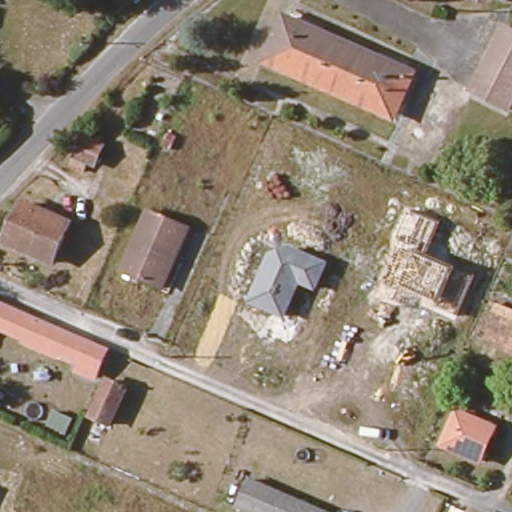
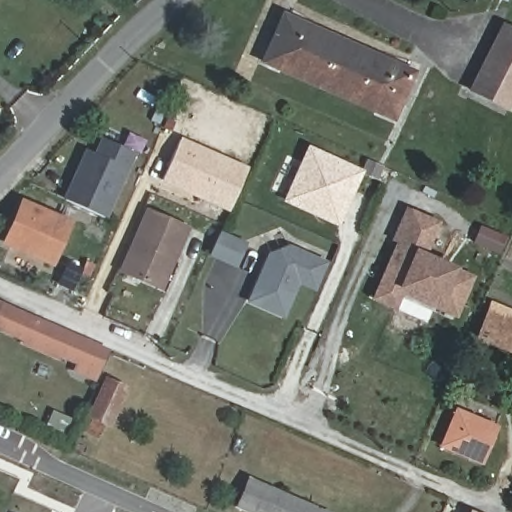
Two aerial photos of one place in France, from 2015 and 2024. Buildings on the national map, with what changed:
unchanged [(502,1),(500,0),(503,0),(502,1)]
unchanged [(381,115),(270,65),(260,61),(266,49),(281,15),(410,72),(396,106),(391,119),(381,115)]
unchanged [(506,110),(467,90),(500,26),(512,32),(512,99),(506,110)]
unchanged [(0,123),(5,128),(0,133),(0,123)]
unchanged [(176,148),(169,145),(175,131),(182,135),(176,148)]
demolished [(91,165),(84,161),(71,156),(80,135),(96,141),(101,143),(91,165)]
new [(249,167),(229,211),(161,182),(180,137),(249,167)]
new [(110,215),(71,198),(86,164),(95,167),(107,139),(137,152),(110,215)]
new [(364,170),(338,227),(282,201),(307,144),(364,170)]
new [(95,167),(86,164),(91,151),(100,155),(95,167)]
unchanged [(55,268),(6,246),(25,205),(72,226),(55,268)]
unchanged [(430,256),(458,267),(474,275),(457,316),(439,307),(405,293),(395,312),(370,299),(395,244),(390,241),(405,205),(440,221),(430,256)]
unchanged [(155,291),(118,275),(145,214),(185,232),(172,261),(159,292),(155,291)]
new [(215,232),(240,244),(231,264),(205,253),(215,232)]
unchanged [(246,301),(266,254),(288,245),(327,261),(314,290),(297,285),(283,317),(246,301)]
unchanged [(475,342),(486,316),(490,307),(512,316),(512,358),(475,342)]
unchanged [(76,366),(35,349),(21,343),(0,334),(0,309),(0,310),(102,353),(91,381),(74,373),(76,366)]
unchanged [(81,428),(87,416),(105,377),(122,386),(105,425),(99,436),(81,428)]
unchanged [(483,466),(444,450),(458,415),(497,432),(483,466)]
unchanged [(248,512),(235,506),(246,479),(323,512),(248,512)]

